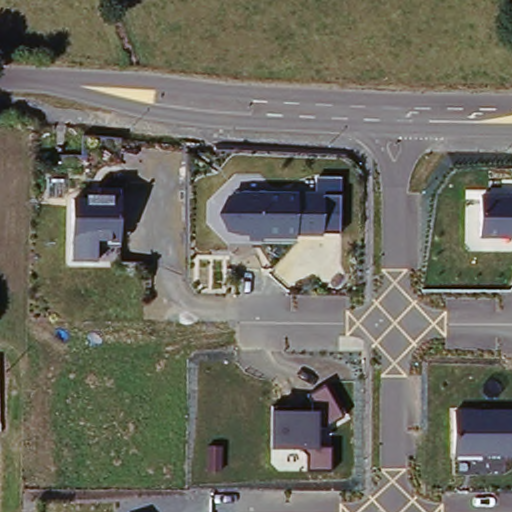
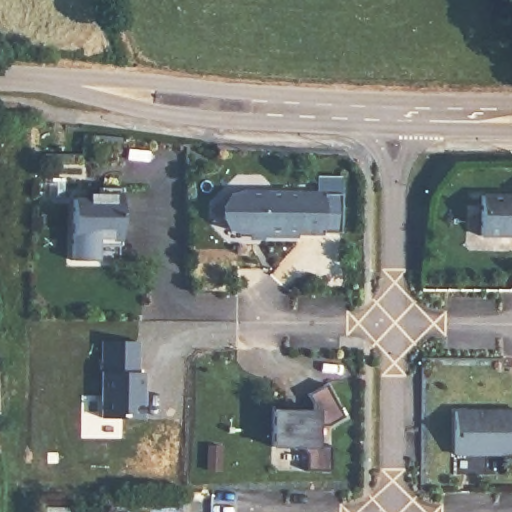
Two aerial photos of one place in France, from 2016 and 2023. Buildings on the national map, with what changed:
unchanged [(72,195),(95,195),(96,187),(121,188),(121,241),(99,240),(99,260),(72,259),(72,195)]
unchanged [(229,194),(244,189),(340,192),(339,235),(240,235),(226,229),(217,209),(229,194)]
unchanged [(512,236),(480,235),(480,195),(512,196),(512,236)]
new [(104,342),(139,342),(139,374),(144,374),(144,420),(103,420),(104,342)]
unchanged [(328,425),(315,425),(315,446),(330,446),(330,471),(307,470),(307,445),(273,445),(273,403),(288,405),(288,411),(313,410),(315,405),(308,395),(327,384),(342,415),(328,425)]
unchanged [(512,453),(455,453),(453,410),(512,410),(512,453)]

